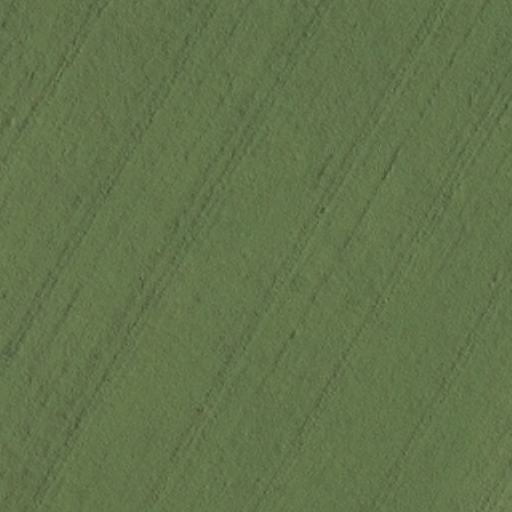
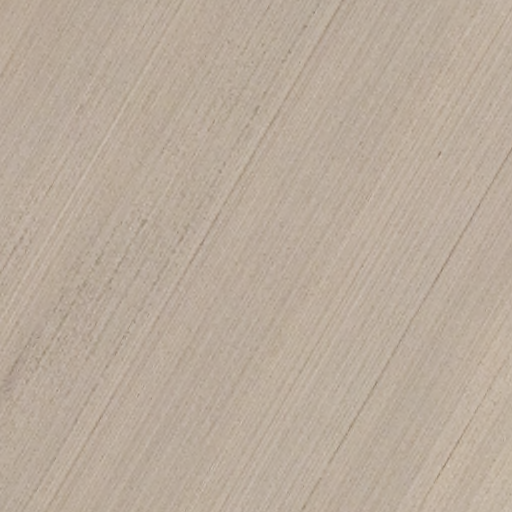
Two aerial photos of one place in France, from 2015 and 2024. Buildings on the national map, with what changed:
[]

